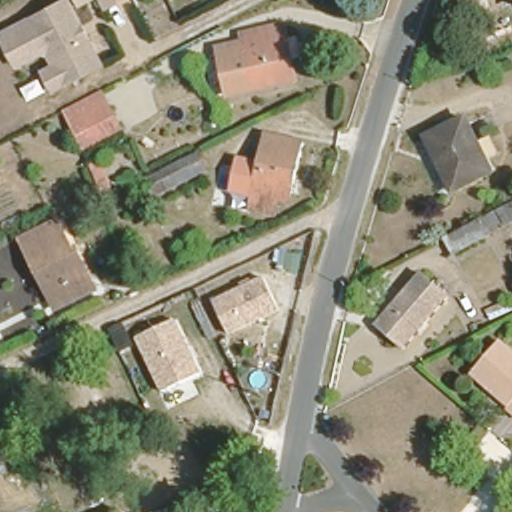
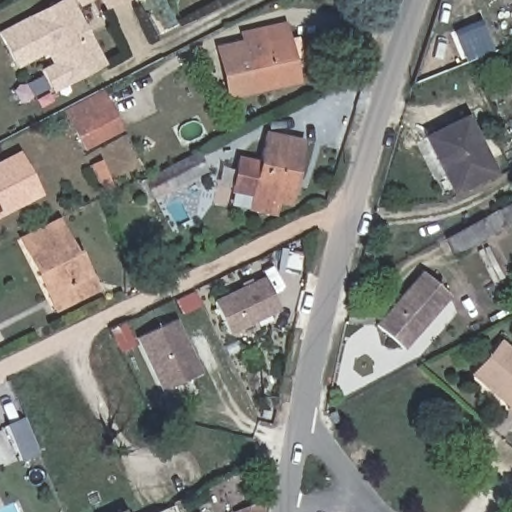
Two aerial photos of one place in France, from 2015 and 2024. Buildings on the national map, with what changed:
unchanged [(41,50),(15,64),(14,61),(0,35),(0,31),(55,2),(59,0),(69,0),(72,6),(82,26),(100,61),(62,81),(51,87),(41,68),(52,62),(47,51),(41,50)]
unchanged [(77,0),(81,0),(78,1),(77,0)]
unchanged [(104,5),(102,0),(113,0),(104,5)]
unchanged [(296,84),(255,92),(230,97),(220,50),(245,45),(242,35),(283,27),(296,84)]
unchanged [(83,150),(72,127),(65,112),(101,95),(107,109),(119,131),(83,150)]
unchanged [(494,172),(454,192),(426,135),(466,115),(494,172)]
unchanged [(300,145),(285,205),(273,202),(270,215),(248,209),(265,136),(300,145)]
unchanged [(200,160),(147,187),(139,170),(191,144),(200,160)]
new [(0,160),(19,151),(42,196),(0,218),(0,160)]
unchanged [(500,218),(452,242),(445,229),(491,204),(500,218)]
unchanged [(59,314),(51,300),(22,242),(60,222),(76,255),(73,256),(76,261),(81,258),(92,280),(70,291),(77,305),(59,314)]
unchanged [(445,292),(400,345),(371,321),(417,268),(445,292)]
unchanged [(265,275),(282,311),(231,335),(213,298),(265,275)]
unchanged [(202,372),(161,392),(135,338),(177,318),(202,372)]
unchanged [(512,350),(512,412),(501,402),(503,400),(465,368),(494,335),(512,350)]
new [(26,420),(41,453),(24,461),(9,428),(26,420)]
unchanged [(230,512),(230,510),(261,493),(258,512),(230,512)]
unchanged [(123,512),(113,512),(121,508),(123,512)]

